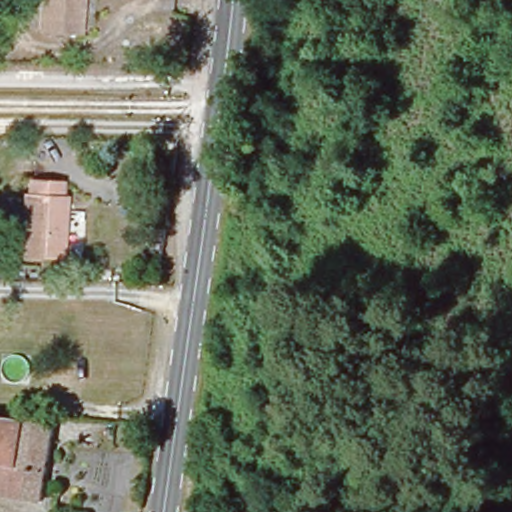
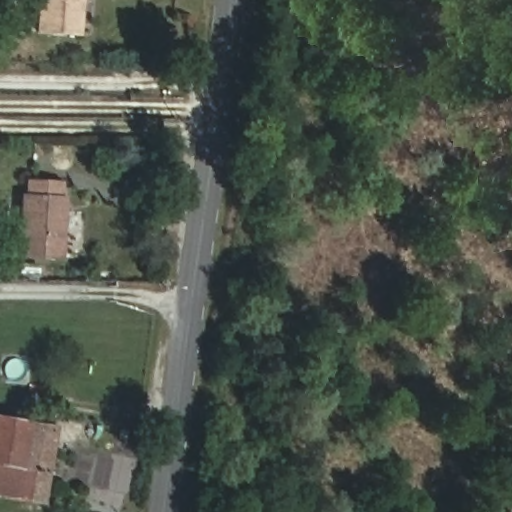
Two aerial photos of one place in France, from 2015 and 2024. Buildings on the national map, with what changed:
unchanged [(82,27),(43,23),(45,0),(85,0),(82,27)]
unchanged [(65,178),(61,253),(20,251),(25,175),(65,178)]
unchanged [(41,499),(0,491),(0,415),(57,427),(41,499)]

